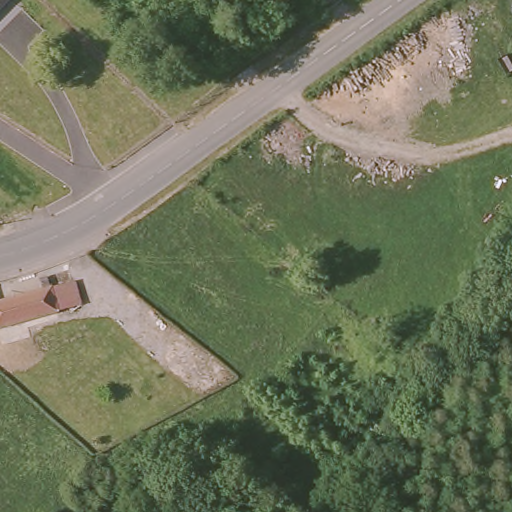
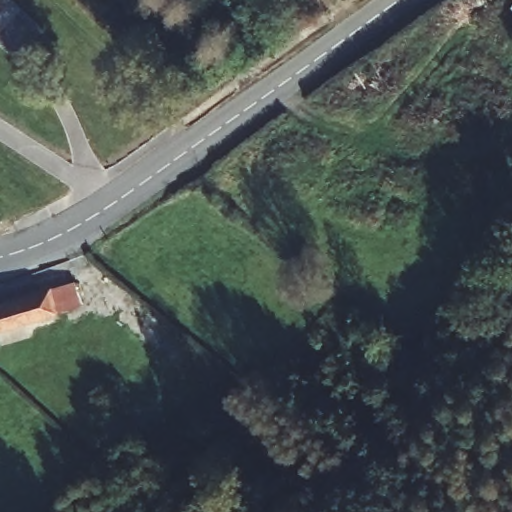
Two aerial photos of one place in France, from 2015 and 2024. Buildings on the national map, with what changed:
unchanged [(10,0),(0,10),(0,0),(10,0)]
unchanged [(75,282),(81,308),(54,315),(0,329),(0,304),(40,294),(37,278),(46,276),(49,291),(75,282)]

